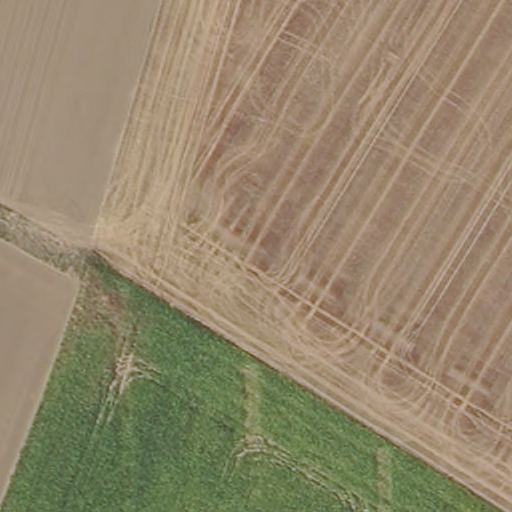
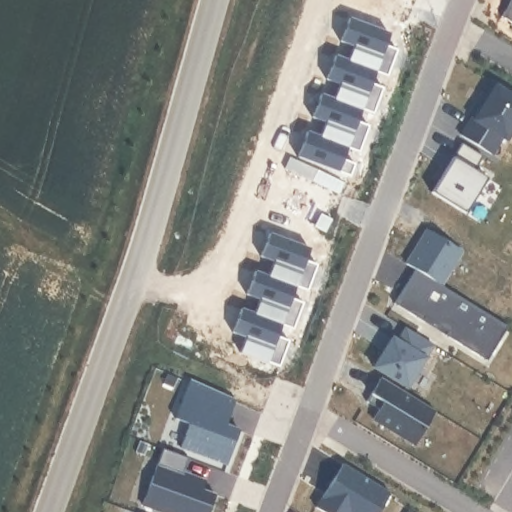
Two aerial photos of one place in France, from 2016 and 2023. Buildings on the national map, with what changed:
new [(512,0),(512,23),(499,14),(507,0),(512,0)]
new [(295,155),(304,130),(318,135),(323,121),(310,116),(318,92),(331,97),(337,82),(324,77),(332,54),(346,59),(351,45),(338,40),(346,17),(387,32),(383,43),(395,47),(384,75),(372,71),(368,81),(380,86),(371,112),(359,107),(354,119),(366,124),(356,151),(344,146),(340,157),(352,162),(347,175),(295,155)]
new [(512,92),(512,128),(506,137),(501,135),(491,152),(462,135),(495,81),(512,92)]
new [(482,156),(473,169),(488,179),(464,213),(431,191),(461,142),(482,156)]
new [(424,228),(458,248),(437,282),(403,262),(424,228)]
new [(238,350),(243,336),(230,331),(239,307),(252,312),(257,297),(244,292),(253,269),(266,274),(271,259),(258,254),(267,231),(308,247),(303,258),(314,262),(304,288),(293,285),(289,296),(300,300),(290,327),(279,323),(275,334),(286,337),(276,364),(238,350)]
new [(504,323),(484,358),(441,332),(443,328),(419,313),(417,318),(392,302),(412,267),(504,323)]
new [(405,388),(371,368),(389,338),(394,342),(403,329),(431,346),(405,388)]
new [(411,446),(371,421),(378,410),(364,402),(380,379),(432,412),(411,446)]
new [(233,399),(224,426),(239,432),(225,466),(180,449),(189,425),(173,418),(188,382),(233,399)]
new [(187,455),(178,478),(214,492),(206,512),(170,512),(141,501),(161,446),(187,455)]
new [(389,491),(377,512),(322,512),(315,507),(343,462),(389,491)]

